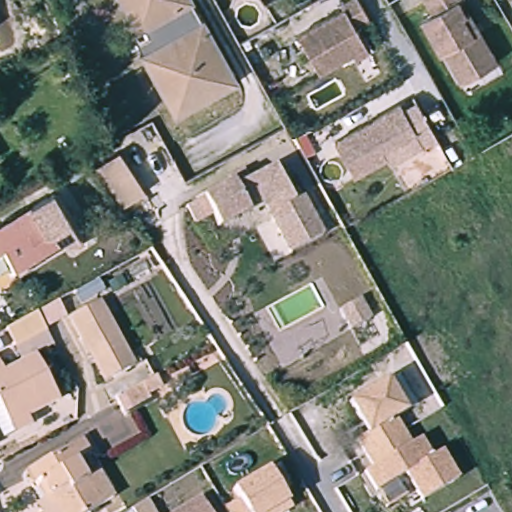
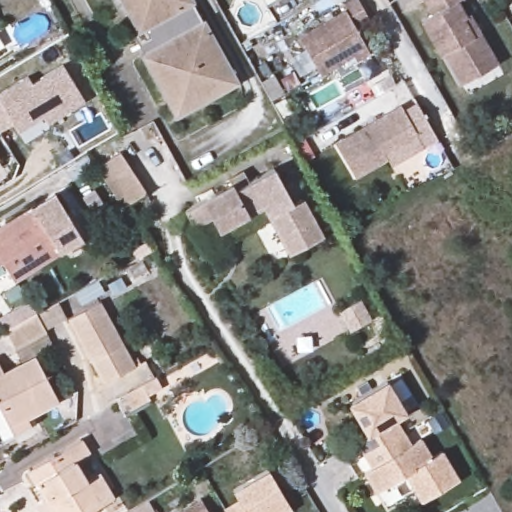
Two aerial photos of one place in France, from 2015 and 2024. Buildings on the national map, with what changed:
unchanged [(121,0),(188,0),(190,2),(187,4),(172,12),(138,31),(121,0)]
unchanged [(355,59),(352,54),(319,72),(298,35),(342,9),(340,4),(348,0),(358,0),(368,19),(355,27),(365,47),(368,52),(355,59)]
unchanged [(471,80),(455,51),(445,56),(426,22),(438,15),(430,1),(429,0),(468,0),(463,3),(470,17),(474,15),(503,63),(471,80)]
unchanged [(187,4),(196,20),(200,18),(229,74),(172,105),(142,50),(180,28),(172,12),(187,4)]
demolished [(8,33),(18,28),(29,45),(18,51),(8,33)]
unchanged [(235,82),(170,119),(135,55),(142,50),(172,105),(229,74),(235,82)]
new [(30,76),(33,83),(65,64),(86,100),(48,123),(44,115),(19,131),(15,123),(1,131),(0,130),(0,94),(30,76)]
unchanged [(405,105),(420,132),(387,151),(391,158),(360,176),(340,143),(405,105)]
unchanged [(98,168),(121,152),(148,192),(125,208),(98,168)]
unchanged [(87,155),(95,167),(73,181),(65,169),(87,155)]
unchanged [(237,183),(239,187),(278,166),(297,202),(306,197),(327,236),(295,253),(267,202),(222,227),(215,214),(197,223),(189,208),(207,199),(237,183)]
unchanged [(47,194),(73,237),(5,279),(0,272),(0,223),(47,194)]
unchanged [(341,309),(360,298),(371,319),(351,329),(341,309)]
unchanged [(95,303),(127,361),(133,358),(136,364),(100,384),(65,319),(95,303)]
unchanged [(16,349),(6,331),(37,315),(46,332),(16,349)]
unchanged [(32,353),(52,395),(23,410),(27,420),(0,436),(0,369),(32,353)]
unchanged [(151,377),(156,388),(143,395),(145,400),(127,410),(119,395),(151,377)]
unchanged [(363,453),(355,439),(366,432),(348,402),(386,380),(405,411),(394,417),(401,430),(363,453)]
unchanged [(401,430),(409,443),(420,437),(430,456),(440,450),(457,478),(420,500),(403,472),(375,490),(363,470),(371,466),(363,453),(401,430)]
unchanged [(57,450),(81,436),(88,449),(74,458),(85,476),(98,469),(112,494),(83,512),(63,512),(56,501),(51,502),(28,466),(56,449),(57,450)]
unchanged [(225,512),(223,510),(238,501),(232,491),(267,469),(287,502),(290,509),(286,512),(225,512)]
unchanged [(212,512),(183,512),(205,499),(212,512)]

